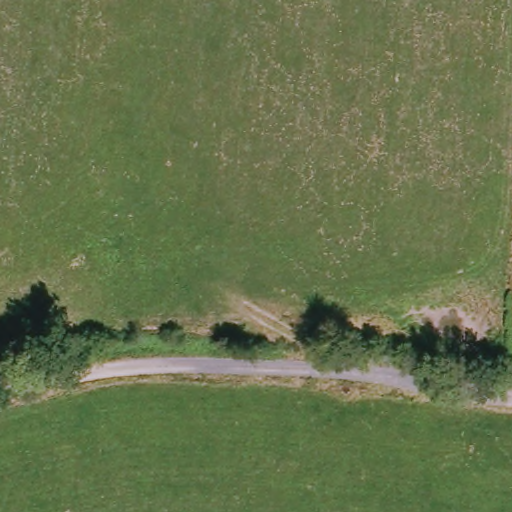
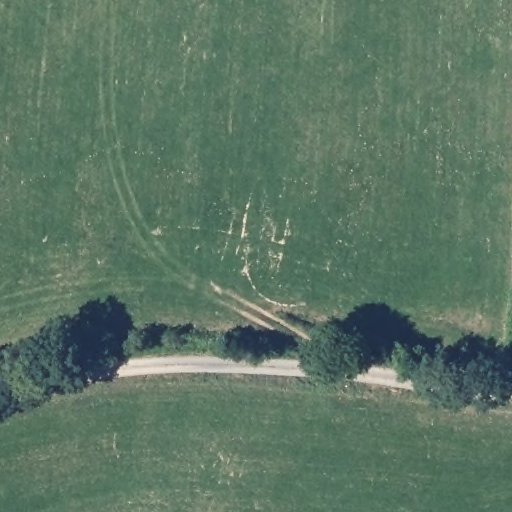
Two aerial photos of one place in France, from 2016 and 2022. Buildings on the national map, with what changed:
[]

